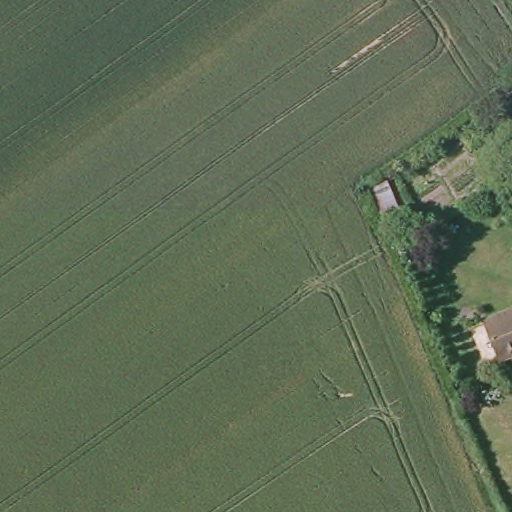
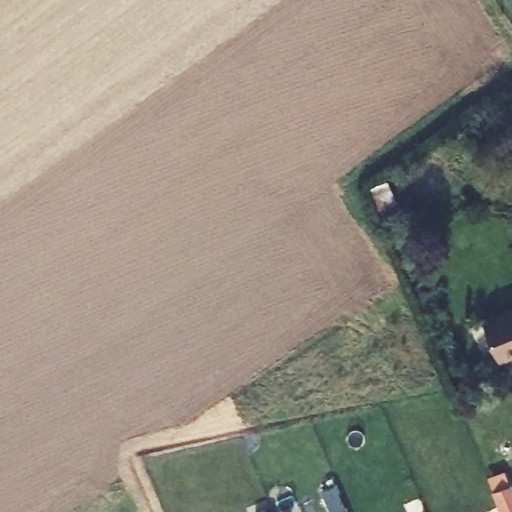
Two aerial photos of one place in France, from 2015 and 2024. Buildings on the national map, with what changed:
unchanged [(403,220),(384,227),(368,187),(386,180),(403,220)]
unchanged [(481,320),(512,308),(512,352),(496,359),(481,320)]
new [(510,484),(512,489),(512,512),(501,512),(493,492),(510,484)]

